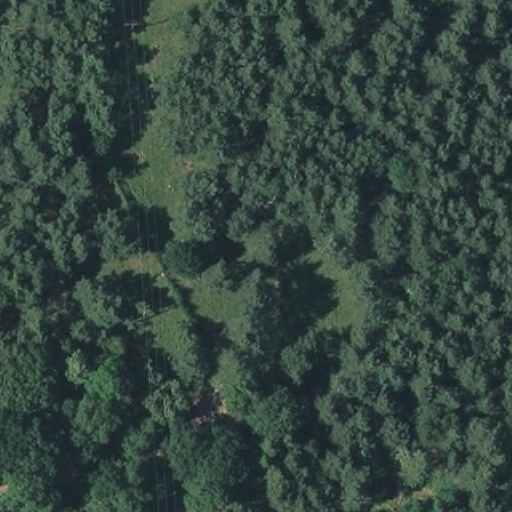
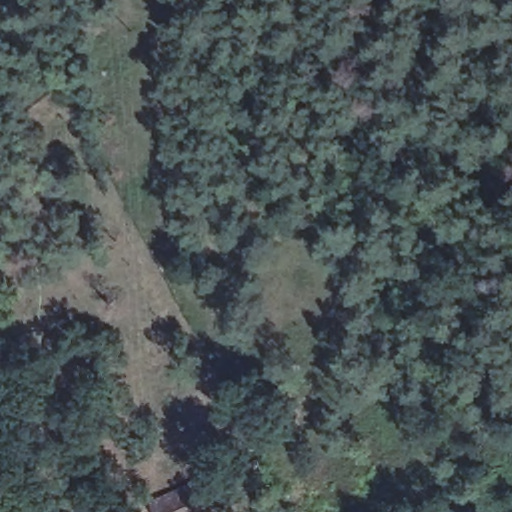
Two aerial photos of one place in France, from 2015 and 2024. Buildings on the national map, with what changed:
unchanged [(200,507),(200,512),(169,512),(169,506),(180,506),(200,507)]

